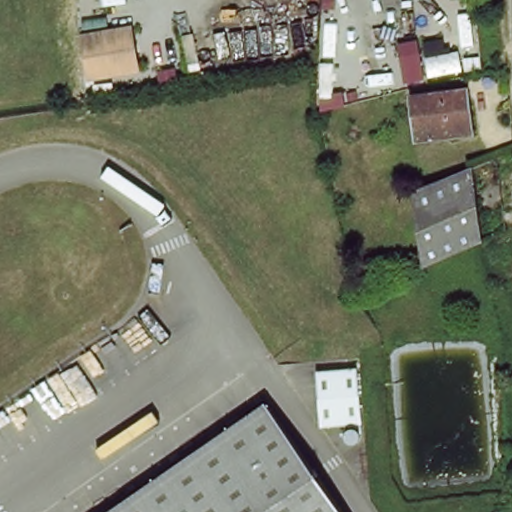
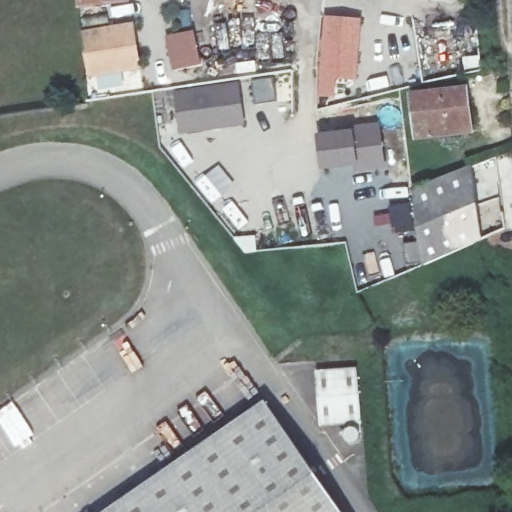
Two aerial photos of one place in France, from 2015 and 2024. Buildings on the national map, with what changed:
new [(322,14),(362,17),(357,81),(338,80),(336,98),(318,97),(322,14)]
unchanged [(134,26),(140,67),(92,73),(86,32),(134,26)]
new [(194,29),(201,64),(172,70),(165,35),(194,29)]
new [(274,75),(277,101),(254,104),(251,78),(274,75)]
new [(180,101),(181,106),(209,102),(207,90),(204,90),(203,84),(239,80),(245,125),(179,133),(175,102),(180,101)]
unchanged [(414,96),(467,88),(473,129),(419,136),(414,96)]
new [(380,120),(387,168),(354,172),(354,167),(320,171),(316,132),(380,120)]
unchanged [(472,167),(481,242),(478,243),(424,267),(415,188),(472,167)]
unchanged [(350,362),(351,414),(316,415),(315,362),(350,362)]
unchanged [(349,512),(116,512),(273,403),(349,512)]

